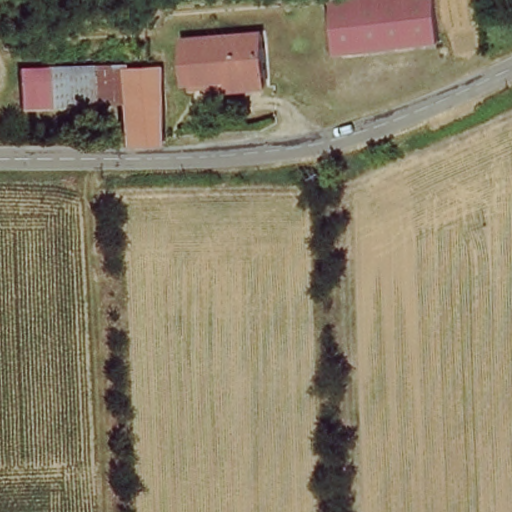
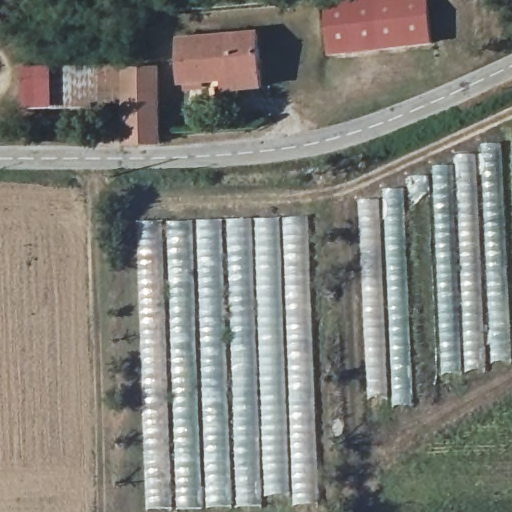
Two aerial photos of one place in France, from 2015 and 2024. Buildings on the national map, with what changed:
unchanged [(433,0),(439,42),(337,57),(330,5),(362,0),(433,0)]
unchanged [(229,95),(228,85),(186,89),(181,45),(258,37),(263,81),(264,91),(229,95)]
unchanged [(127,109),(28,108),(29,70),(125,72),(127,109)]
unchanged [(159,70),(161,151),(125,151),(124,142),(127,109),(125,72),(159,70)]
new [(385,190),(410,190),(410,179),(434,179),(434,169),(457,167),(457,157),(481,154),(480,146),(500,145),(512,347),(512,363),(490,366),(490,375),(465,375),(465,386),(440,386),(441,397),(415,397),(416,408),(393,408),(392,421),(371,421),(361,204),(386,201),(385,190)]
new [(314,217),(320,505),(149,512),(139,224),(314,217)]

